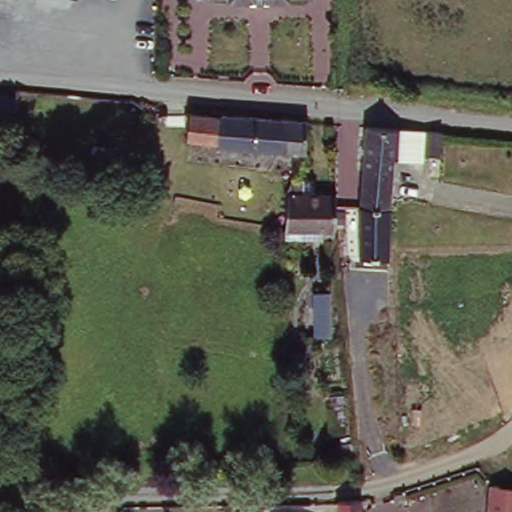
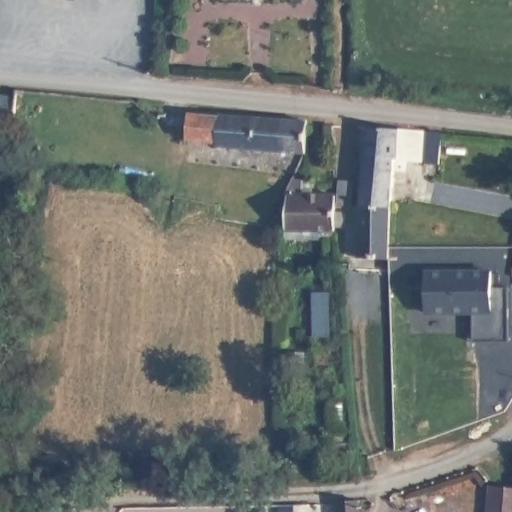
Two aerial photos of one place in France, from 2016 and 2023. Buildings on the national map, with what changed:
demolished [(20,90),(16,115),(0,113),(0,88),(7,89),(20,90)]
unchanged [(220,117),(220,111),(280,118),(275,149),(274,157),(260,155),(261,149),(215,144),(185,137),(190,114),(220,117)]
unchanged [(310,120),(306,153),(275,149),(280,118),(310,120)]
unchanged [(356,207),(363,122),(396,126),(390,164),(386,209),(356,207)]
unchanged [(452,159),(429,157),(432,132),(453,135),(452,159)]
unchanged [(288,198),(336,196),(335,210),(335,228),(291,229),(288,198)]
unchanged [(383,256),(353,255),(356,207),(386,209),(385,238),(383,256)]
new [(428,312),(428,272),(495,273),(494,288),(510,288),(510,343),(482,343),(475,343),(475,313),(428,312)]
new [(317,293),(332,294),(331,337),(316,336),(317,293)]
unchanged [(445,494),(397,506),(391,486),(407,482),(440,474),(445,494)]
unchanged [(512,491),(512,512),(490,512),(492,490),(512,491)]
unchanged [(364,512),(342,512),(341,500),(365,498),(364,512)]

